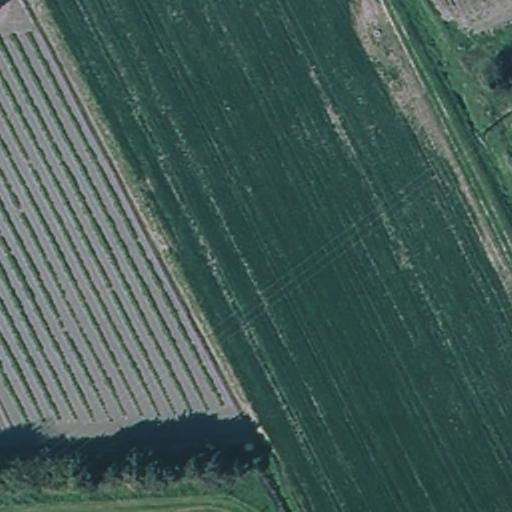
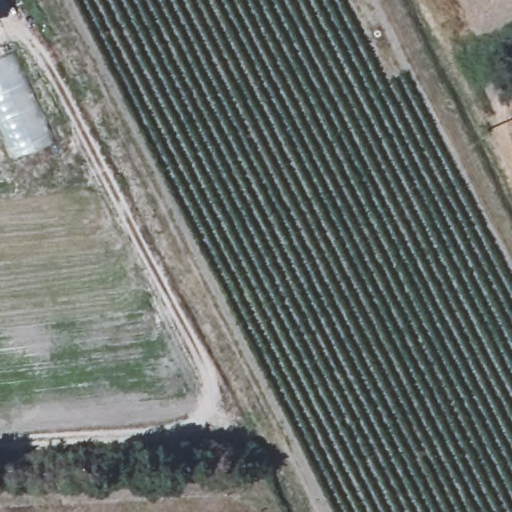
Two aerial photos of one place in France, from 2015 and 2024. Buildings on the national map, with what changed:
new [(13,48),(52,141),(10,157),(0,134),(0,53),(13,48)]

